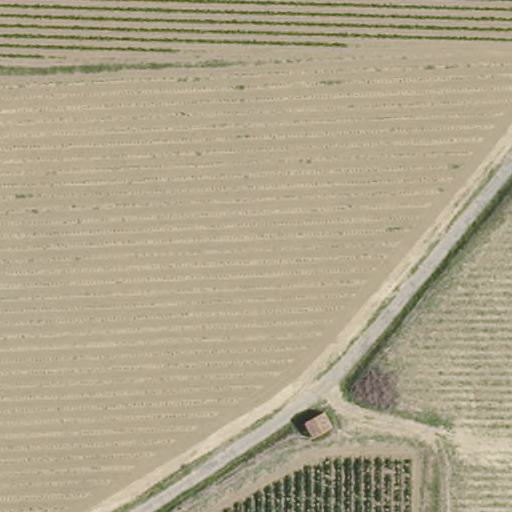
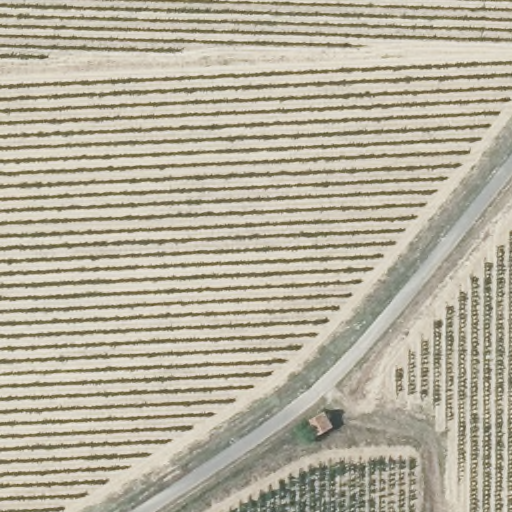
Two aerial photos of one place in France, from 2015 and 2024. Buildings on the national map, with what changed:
unchanged [(327,429),(310,437),(304,426),(321,417),(327,429)]

